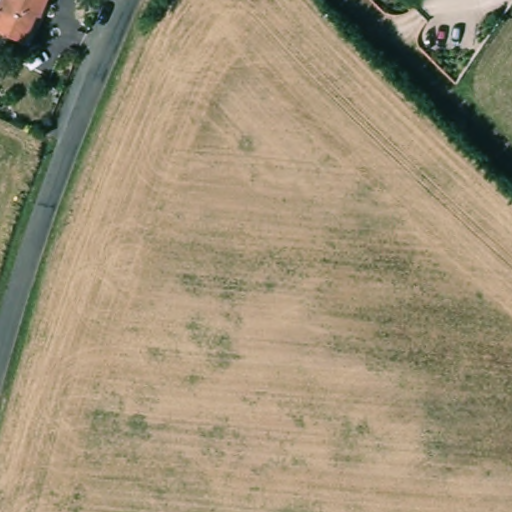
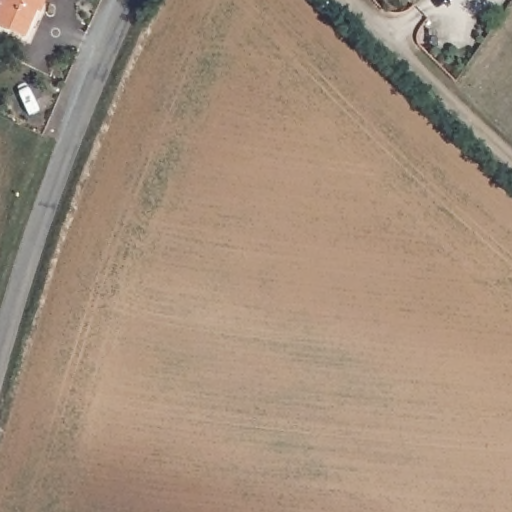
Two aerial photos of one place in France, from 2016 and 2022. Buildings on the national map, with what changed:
unchanged [(38,5),(24,38),(0,28),(0,0),(46,0),(43,8),(38,5)]

